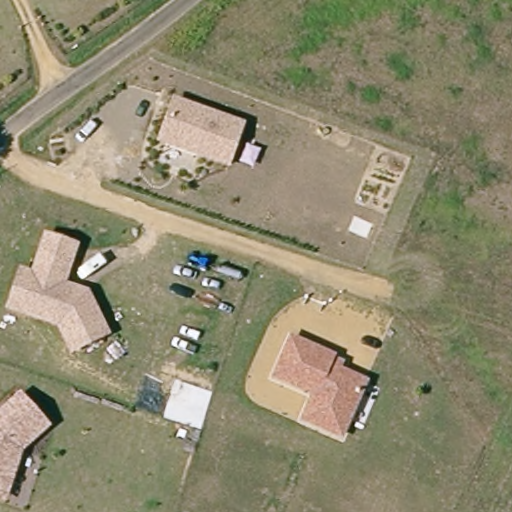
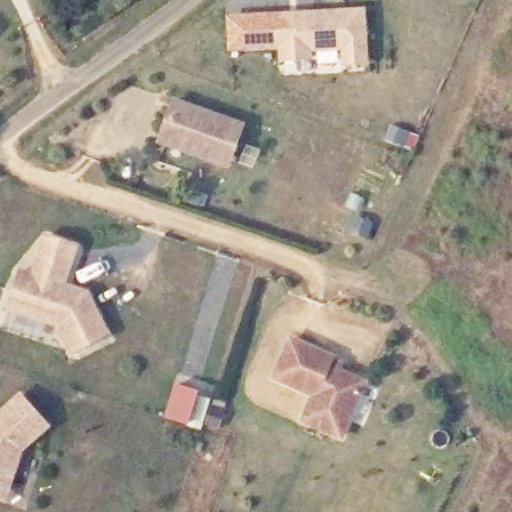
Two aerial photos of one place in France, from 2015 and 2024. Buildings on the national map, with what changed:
new [(367,66),(342,66),(342,50),(312,52),(313,61),(279,62),(277,14),(364,8),(367,66)]
new [(228,50),(226,15),(277,14),(278,47),(228,50)]
unchanged [(243,124),(229,163),(161,139),(175,100),(243,124)]
unchanged [(21,308),(8,304),(13,289),(20,268),(32,272),(45,233),(74,242),(61,281),(86,289),(106,329),(72,347),(58,320),(44,316),(21,308)]
unchanged [(331,362),(340,366),(337,373),(364,384),(342,439),(303,423),(314,397),(274,380),(290,342),(332,360),(331,362)]
new [(204,424),(202,430),(164,418),(175,384),(202,392),(201,396),(227,404),(219,429),(204,424)]
unchanged [(0,411),(20,392),(47,421),(36,432),(22,445),(15,464),(6,493),(0,491),(0,411)]

